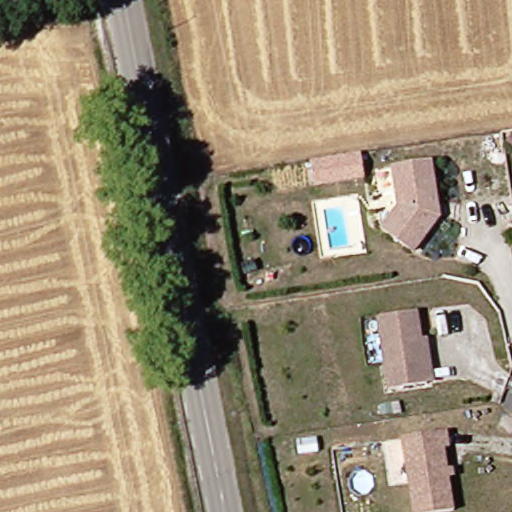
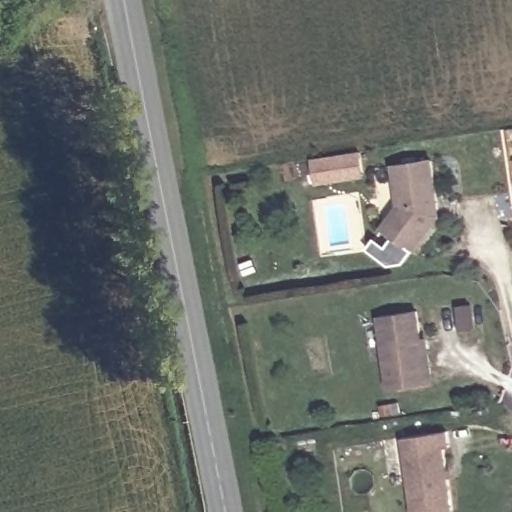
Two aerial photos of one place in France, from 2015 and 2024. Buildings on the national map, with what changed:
unchanged [(417,248),(385,225),(402,203),(396,163),(434,157),(440,197),(442,213),(417,248)]
unchanged [(421,304),(432,376),(393,382),(383,309),(421,304)]
unchanged [(450,443),(444,444),(454,507),(421,512),(414,512),(402,434),(448,427),(450,443)]

